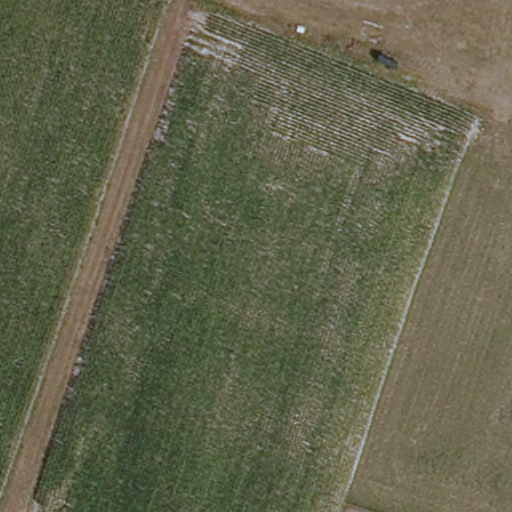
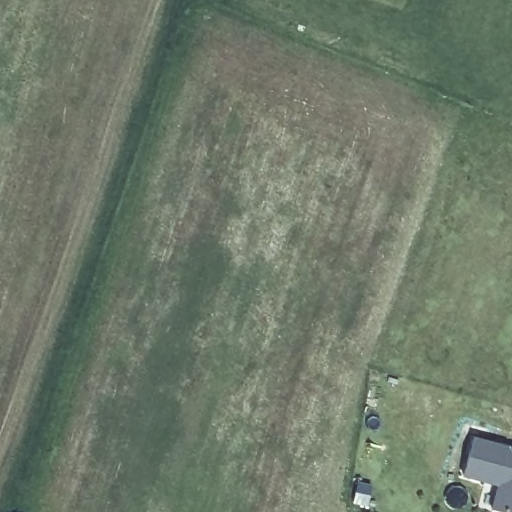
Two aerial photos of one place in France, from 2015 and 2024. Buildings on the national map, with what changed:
new [(483,512),(475,510),(482,483),(461,477),(471,439),(512,450),(512,512),(483,512)]

